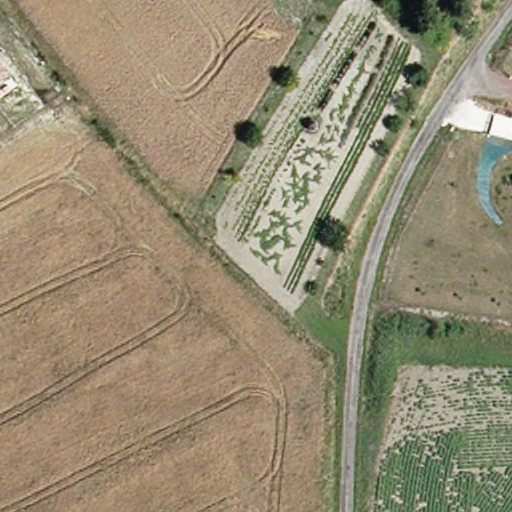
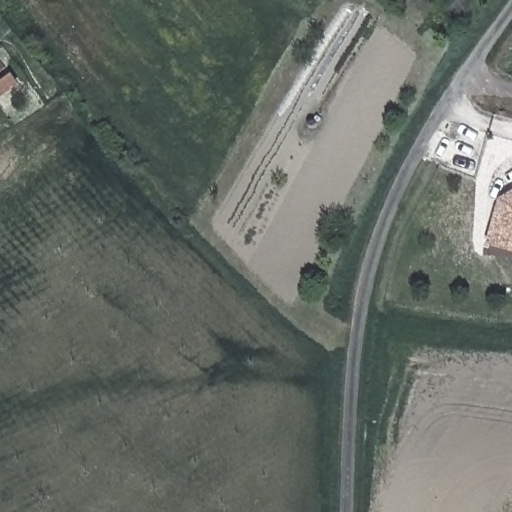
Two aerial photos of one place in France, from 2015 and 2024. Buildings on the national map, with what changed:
new [(499,198),(512,192),(512,251),(486,244),(499,198)]

